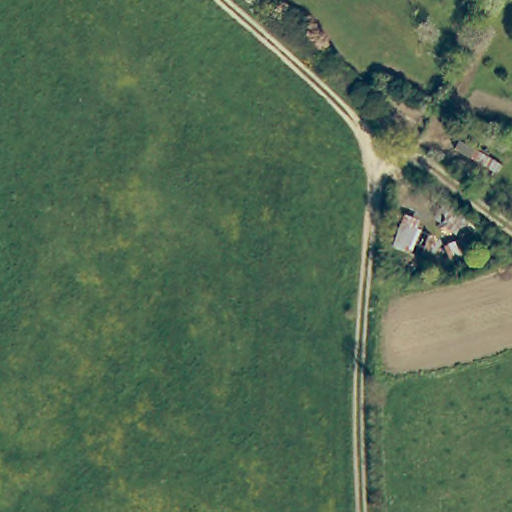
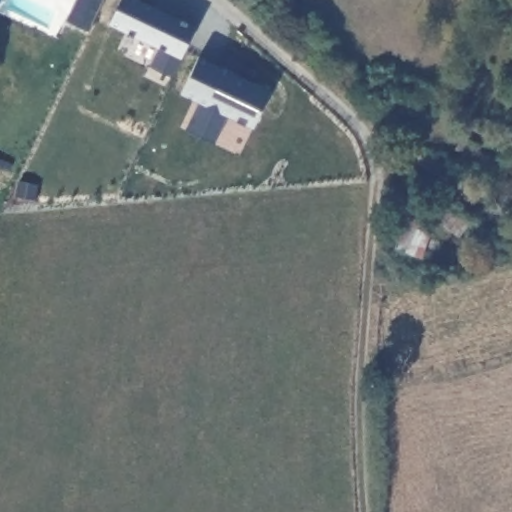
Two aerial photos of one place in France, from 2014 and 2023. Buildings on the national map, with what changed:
new [(69,14),(75,0),(103,0),(91,25),(69,14)]
new [(111,18),(119,0),(151,0),(157,3),(175,12),(197,22),(176,68),(174,72),(151,61),(152,57),(161,42),(111,18)]
new [(230,111),(216,140),(187,126),(190,119),(201,97),(182,89),(185,85),(200,53),(235,69),(256,79),(272,87),(257,120),(255,123),(230,111)]
unchanged [(497,162),(492,172),(448,147),(453,137),(497,162)]
unchanged [(396,217),(425,221),(422,252),(392,249),(396,217)]

